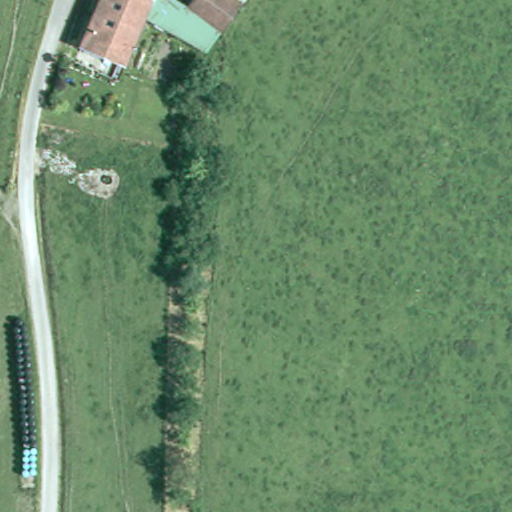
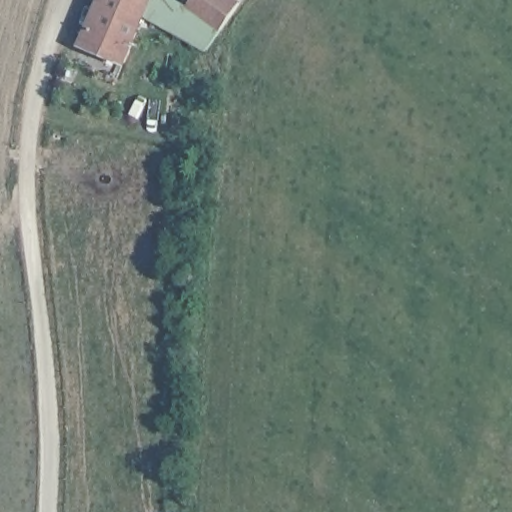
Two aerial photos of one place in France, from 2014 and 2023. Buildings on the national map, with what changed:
unchanged [(145,16),(123,62),(81,44),(101,0),(182,0),(189,4),(191,0),(243,0),(208,50),(145,16)]

